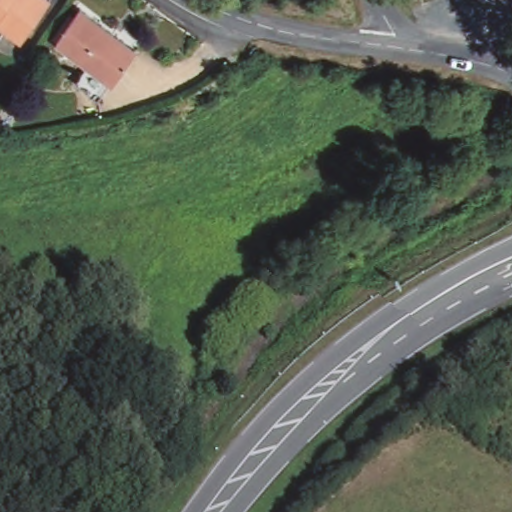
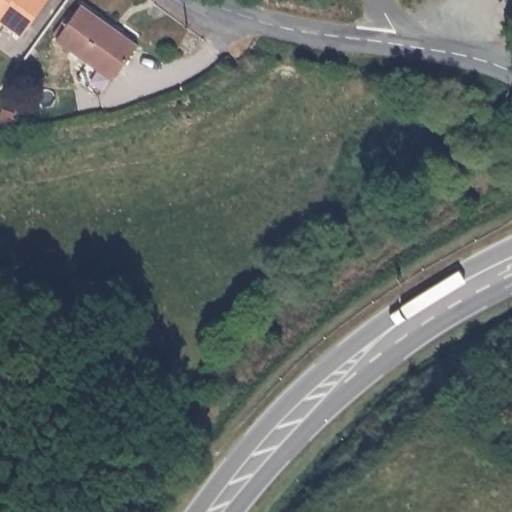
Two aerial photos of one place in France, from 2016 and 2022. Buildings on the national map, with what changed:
unchanged [(3,19),(0,23),(0,0),(45,0),(21,33),(3,19)]
unchanged [(79,6),(134,45),(110,78),(106,76),(94,92),(74,79),(86,60),(55,39),(79,6)]

